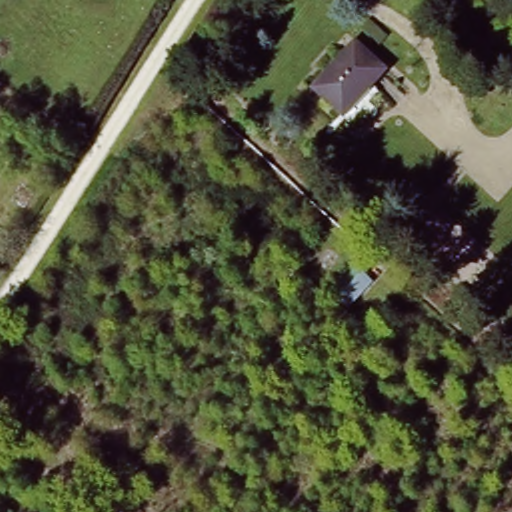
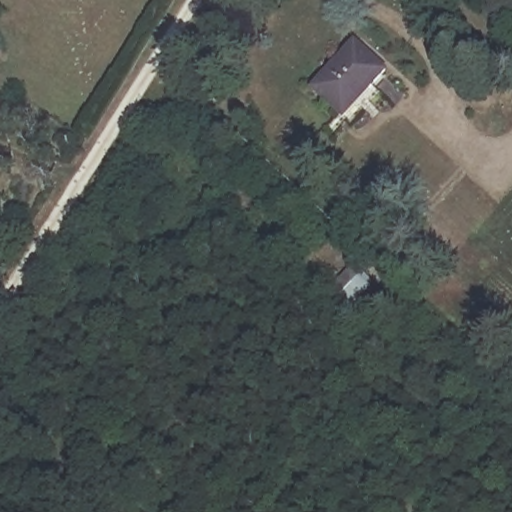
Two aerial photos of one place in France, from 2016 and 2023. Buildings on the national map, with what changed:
unchanged [(307,84),(348,39),(378,66),(365,80),(370,85),(343,116),(307,84)]

